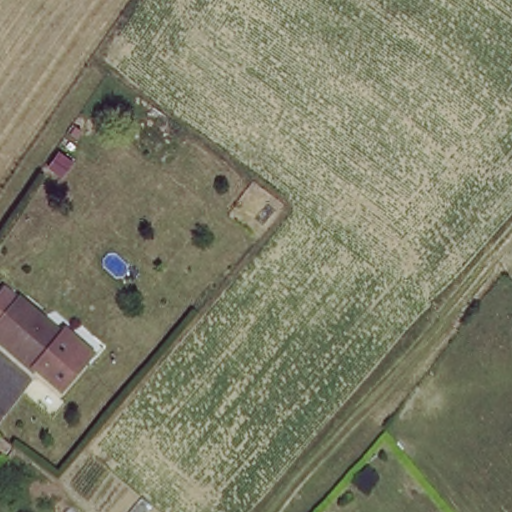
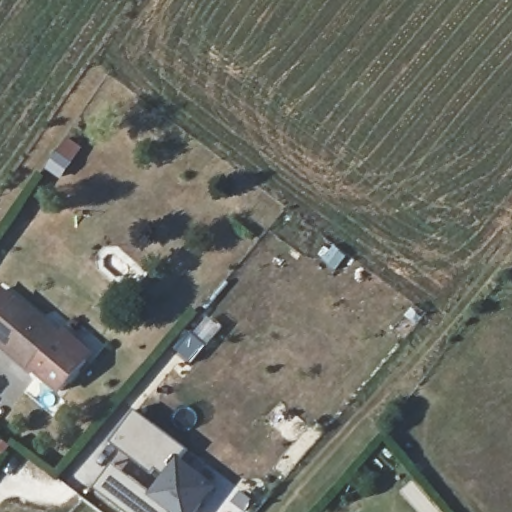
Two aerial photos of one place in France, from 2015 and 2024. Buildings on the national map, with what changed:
unchanged [(69,330),(89,347),(95,353),(90,359),(63,390),(37,367),(35,368),(0,338),(0,297),(7,288),(21,299),(22,298),(65,334),(68,331),(69,330)]
new [(151,493),(165,474),(156,468),(153,473),(112,443),(136,411),(188,450),(182,459),(218,486),(198,512),(173,512),(173,511),(172,512),(127,512),(96,488),(114,464),(151,493)]
demolished [(337,512),(318,512),(327,502),(337,512)]

